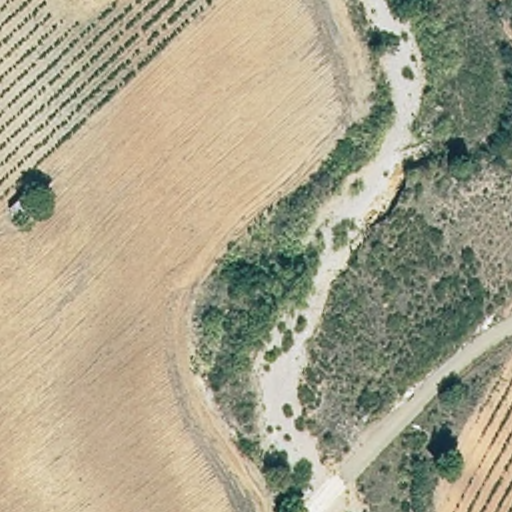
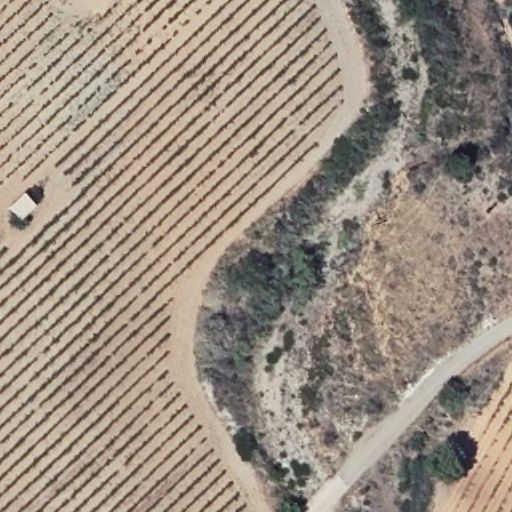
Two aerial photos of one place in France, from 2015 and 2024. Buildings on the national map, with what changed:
unchanged [(24,184),(38,201),(22,216),(5,201),(24,184)]

